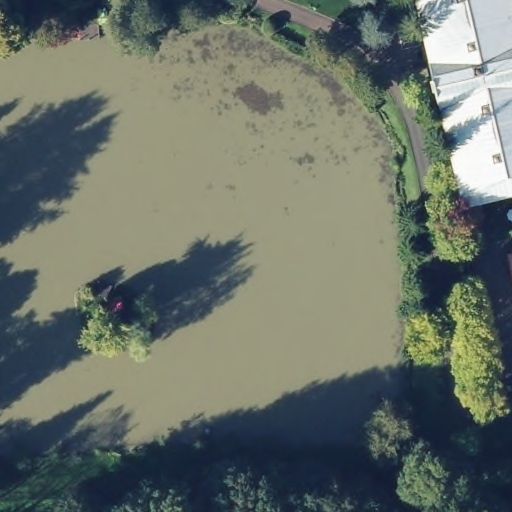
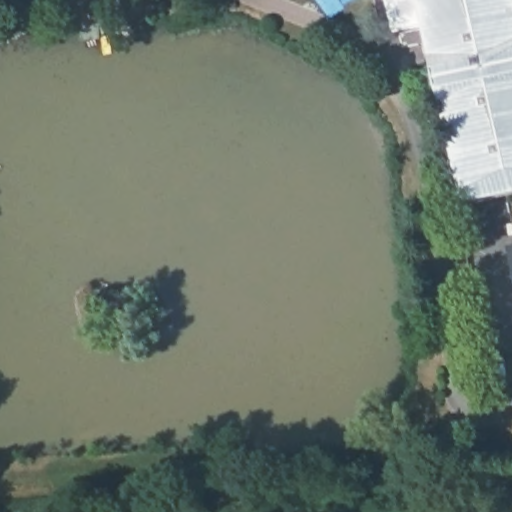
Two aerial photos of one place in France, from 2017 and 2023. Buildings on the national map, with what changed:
unchanged [(451,64),(512,50),(512,189),(457,201),(419,0),(436,0),(451,64)]
unchanged [(451,64),(436,0),(512,0),(512,50),(451,64)]

